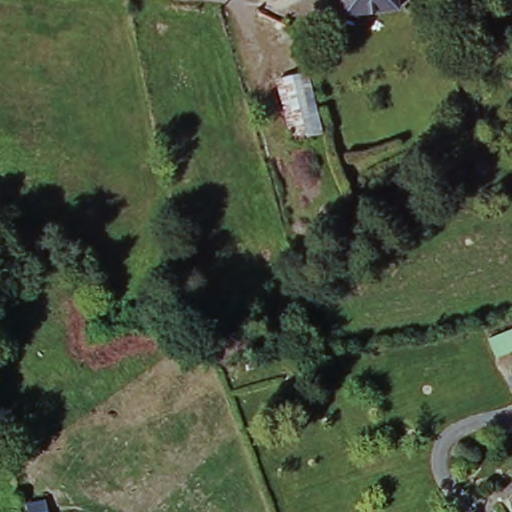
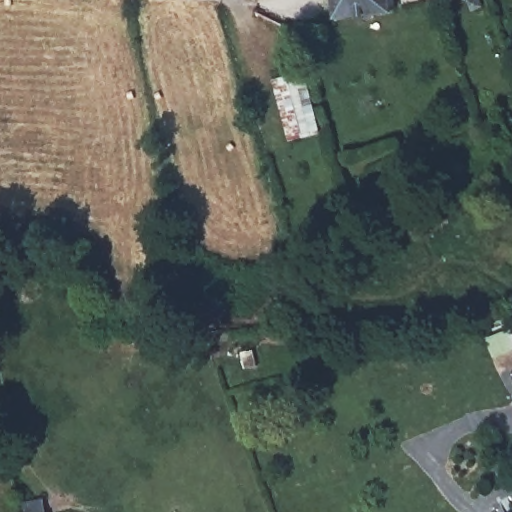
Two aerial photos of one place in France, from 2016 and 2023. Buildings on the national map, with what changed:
unchanged [(343,18),(341,0),(399,0),(400,10),(343,18)]
unchanged [(308,76),(322,136),(295,143),(280,81),(308,76)]
unchanged [(174,333),(176,349),(148,352),(146,337),(174,333)]

